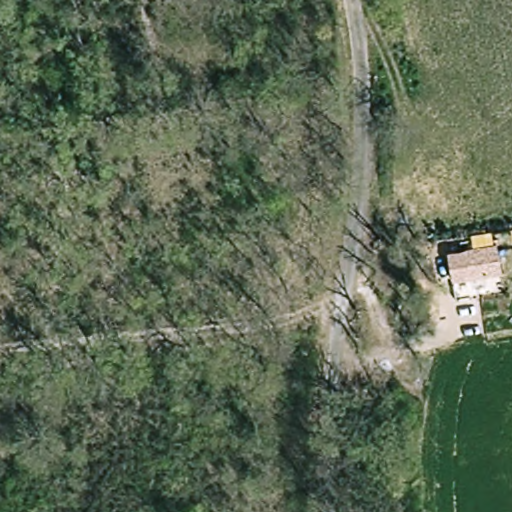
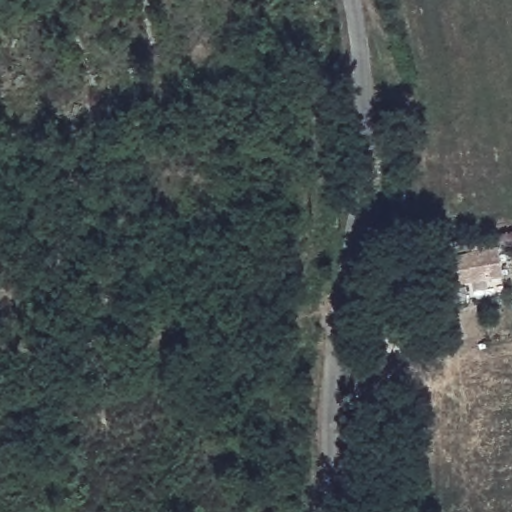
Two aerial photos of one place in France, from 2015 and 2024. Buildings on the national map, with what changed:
unchanged [(506,277),(474,285),(467,255),(499,247),(506,277)]

